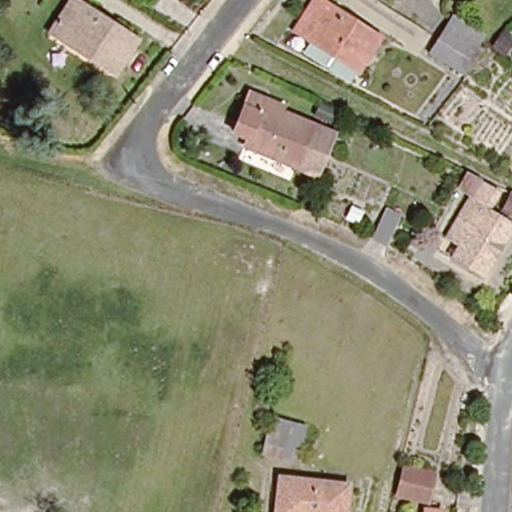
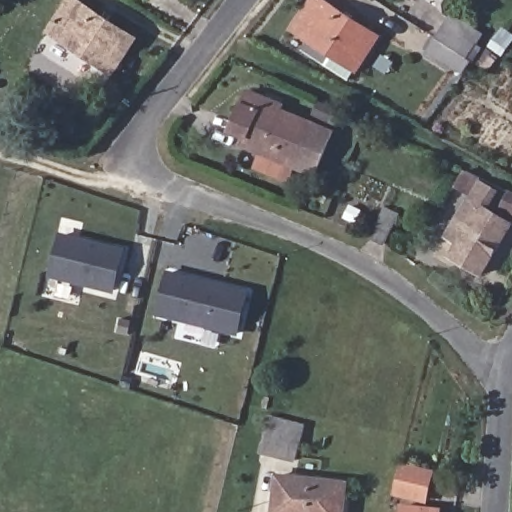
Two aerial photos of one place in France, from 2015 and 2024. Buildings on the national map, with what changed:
unchanged [(42,30),(63,0),(72,0),(135,42),(111,77),(42,30)]
unchanged [(306,47),(312,37),(292,25),(307,0),(329,0),(385,33),(365,67),(361,65),(355,76),(306,47)]
unchanged [(431,49),(442,32),(453,14),(484,34),(483,35),(471,51),(458,67),(431,49)]
unchanged [(250,86),(265,94),(285,103),(279,114),(324,137),(305,171),(240,137),(243,131),(230,124),(250,86)]
unchanged [(452,242),(473,195),(458,189),(468,167),(500,182),(492,200),(512,209),(512,225),(496,261),(452,242)]
unchanged [(505,200),(511,187),(512,187),(512,202),(505,200)]
unchanged [(375,235),(387,204),(402,209),(390,241),(375,235)]
new [(59,237),(120,251),(110,290),(49,276),(59,237)]
new [(165,273),(244,293),(233,334),(155,314),(165,273)]
unchanged [(253,452),(259,422),(303,429),(297,461),(253,452)]
unchanged [(427,503),(395,493),(403,466),(436,475),(427,503)]
unchanged [(350,482),(348,512),(273,512),(275,477),(350,482)]
unchanged [(438,510),(438,512),(422,512),(422,509),(438,510)]

